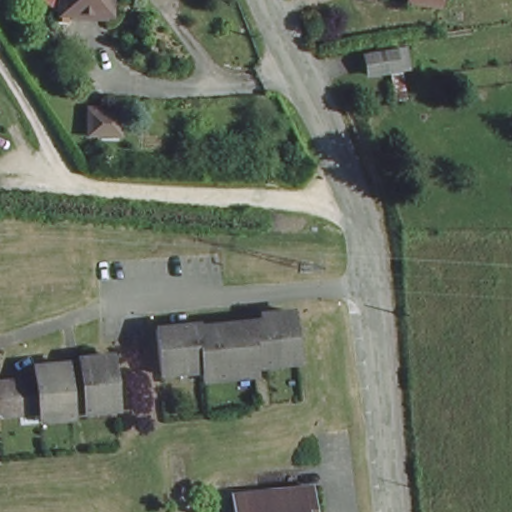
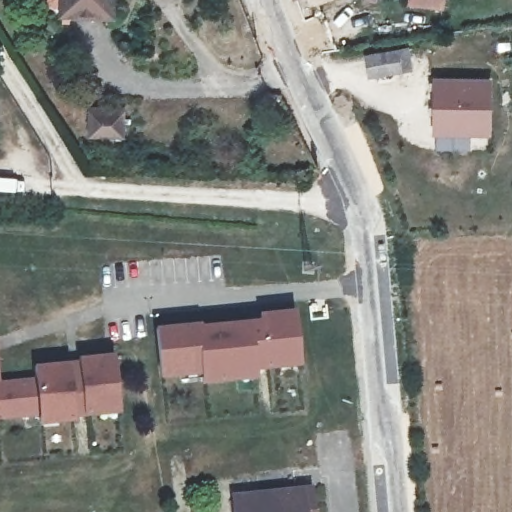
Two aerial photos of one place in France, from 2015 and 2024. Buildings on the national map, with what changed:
unchanged [(64,15),(64,10),(56,10),(47,4),(44,0),(113,0),(112,17),(64,15)]
unchanged [(408,9),(409,0),(441,0),(442,5),(408,9)]
new [(408,42),(413,70),(368,81),(362,53),(408,42)]
demolished [(375,56),(377,76),(345,79),(344,59),(375,56)]
new [(491,137),(432,135),(433,77),(490,79),(491,137)]
unchanged [(114,143),(82,142),(82,120),(115,121),(114,143)]
unchanged [(295,364),(252,368),(252,377),(200,382),(196,370),(155,373),(152,326),(200,322),(200,330),(256,323),(255,312),(272,311),(289,311),(295,364)]
unchanged [(32,370),(76,367),(75,361),(111,358),(113,412),(72,413),(72,421),(35,423),(35,416),(0,419),(0,388),(33,386),(32,370)]
unchanged [(316,493),(318,512),(234,512),(233,502),(316,493)]

